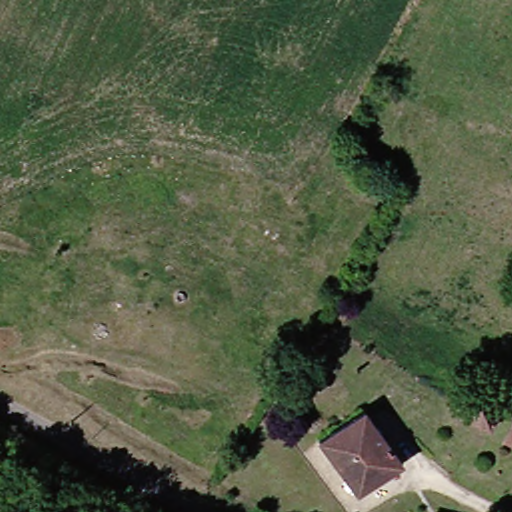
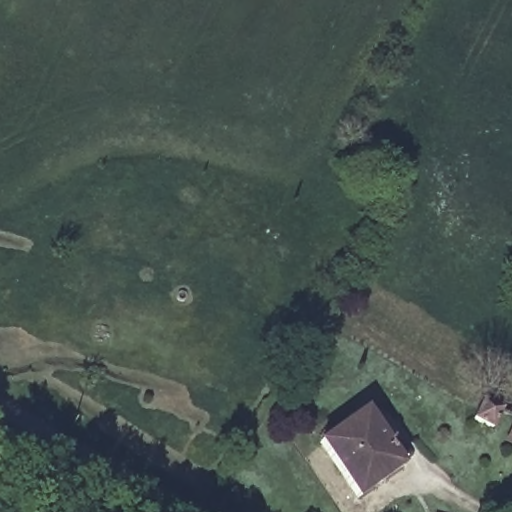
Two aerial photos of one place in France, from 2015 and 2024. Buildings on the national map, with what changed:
unchanged [(491,430),(475,423),(482,405),(499,413),(491,430)]
unchanged [(322,444),(367,409),(408,462),(364,498),(322,444)]
unchanged [(500,439),(510,417),(512,417),(512,444),(500,439)]

